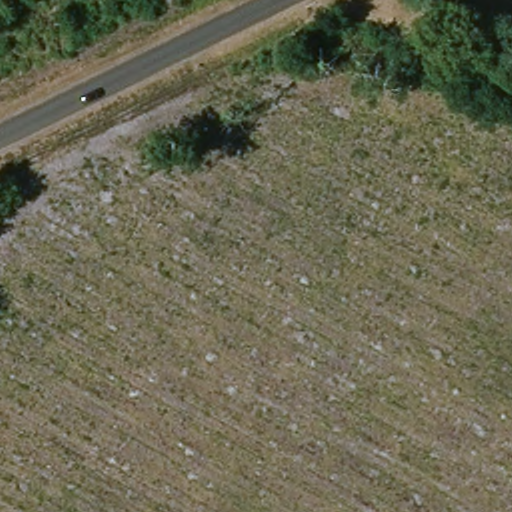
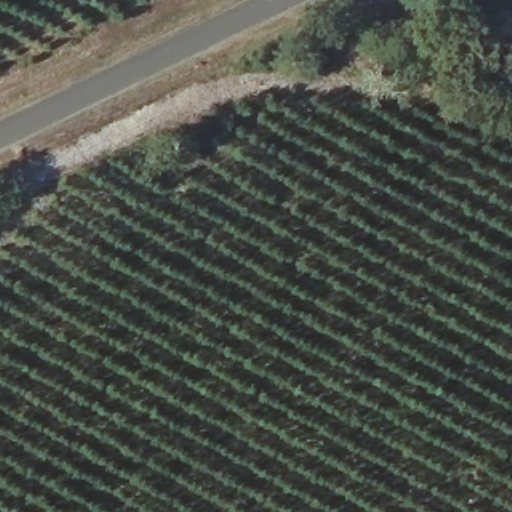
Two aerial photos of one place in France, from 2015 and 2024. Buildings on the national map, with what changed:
unchanged [(475,57),(486,29),(506,39),(497,66),(475,57)]

